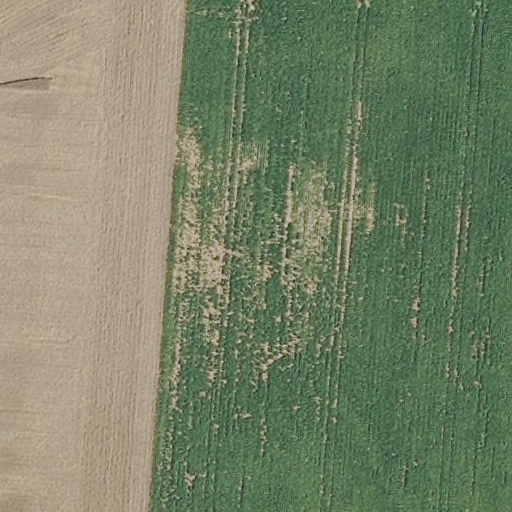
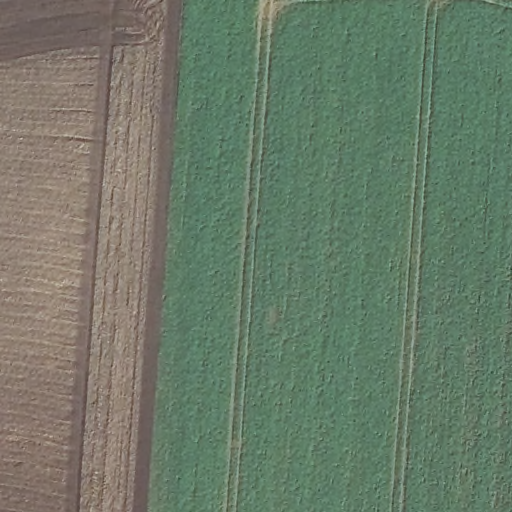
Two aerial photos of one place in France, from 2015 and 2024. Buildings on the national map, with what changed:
[]

